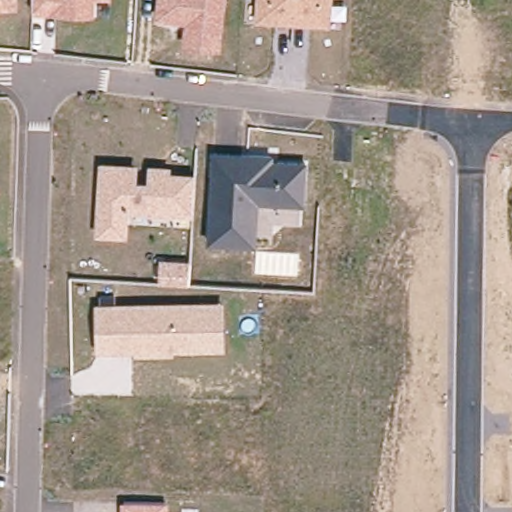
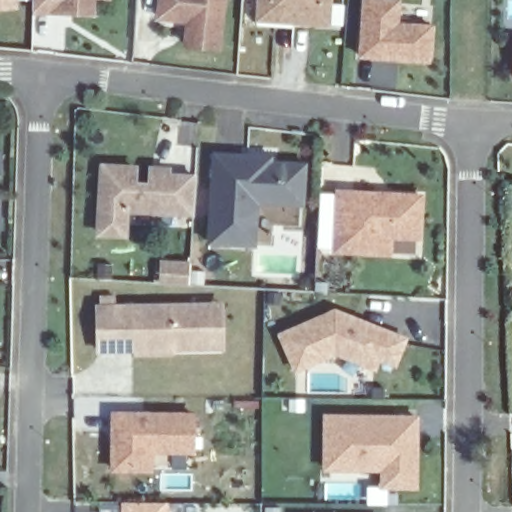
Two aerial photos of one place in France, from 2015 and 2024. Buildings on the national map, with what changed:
unchanged [(15,5),(0,7),(0,0),(15,0),(15,5)]
unchanged [(33,0),(95,0),(94,15),(33,11),(33,0)]
unchanged [(184,23),(154,18),(157,0),(226,0),(221,52),(182,46),(184,23)]
unchanged [(329,22),(257,17),(258,0),(330,0),(329,22)]
new [(399,22),(434,24),(431,63),(359,57),(363,0),(401,0),(399,22)]
unchanged [(305,201),(259,199),(257,243),(223,241),(210,240),(212,209),(215,151),(273,154),(273,159),(279,159),(307,161),(305,201)]
unchanged [(127,208),(126,218),(124,218),(123,232),(100,231),(104,165),(135,166),(134,183),(151,183),(152,173),(153,162),(169,163),(169,174),(197,175),(195,206),(195,211),(127,208)]
unchanged [(368,248),(335,247),(337,188),(379,190),(390,190),(420,191),(419,233),(391,232),(390,249),(368,248)]
new [(166,263),(193,264),(192,284),(165,282),(166,263)]
unchanged [(208,304),(223,303),(223,310),(224,347),(209,347),(100,349),(100,307),(100,305),(208,304)]
new [(394,367),(380,361),(376,370),(336,354),(295,373),(278,331),(335,308),(409,338),(394,367)]
new [(196,412),(195,454),(153,454),(153,473),(110,472),(111,412),(196,412)]
new [(419,414),(419,488),(381,489),(380,472),(322,472),(322,415),(419,414)]
unchanged [(169,503),(169,512),(120,512),(120,502),(169,503)]

